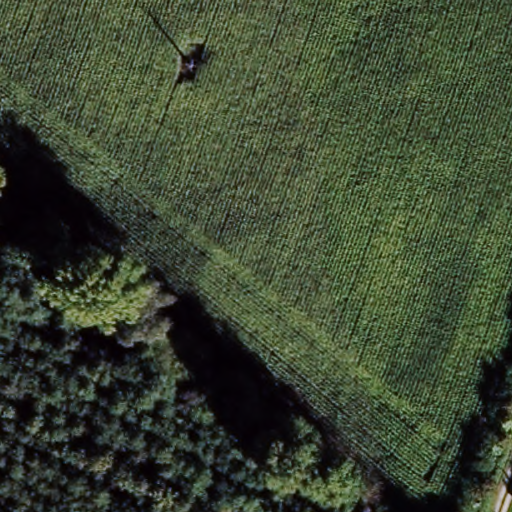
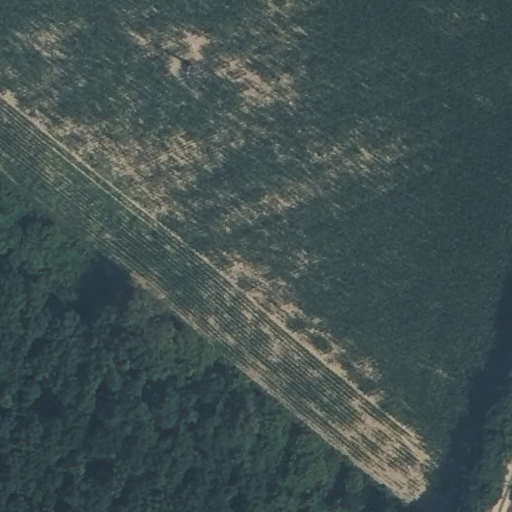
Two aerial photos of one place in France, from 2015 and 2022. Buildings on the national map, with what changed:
[]

